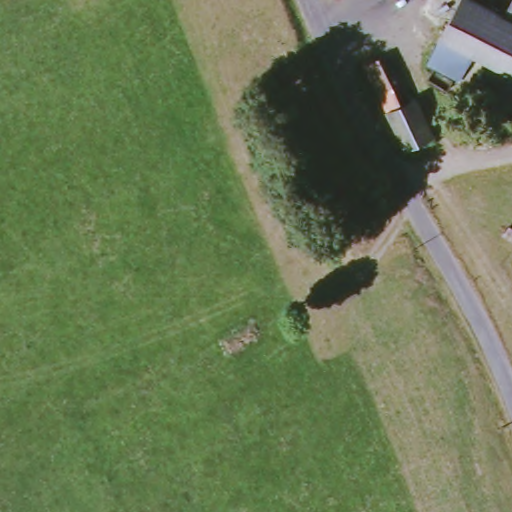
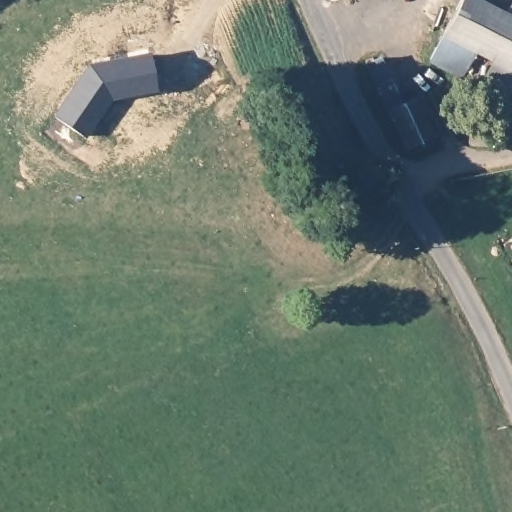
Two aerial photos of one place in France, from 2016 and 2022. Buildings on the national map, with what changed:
unchanged [(342,5),(339,0),(350,0),(342,5)]
unchanged [(511,0),(512,0),(512,77),(477,60),(467,82),(431,65),(462,0),(471,0),(504,16),(511,0)]
new [(91,67),(149,52),(158,84),(113,95),(89,136),(60,120),(91,67)]
unchanged [(387,52),(411,99),(419,95),(441,137),(411,152),(364,64),(387,52)]

